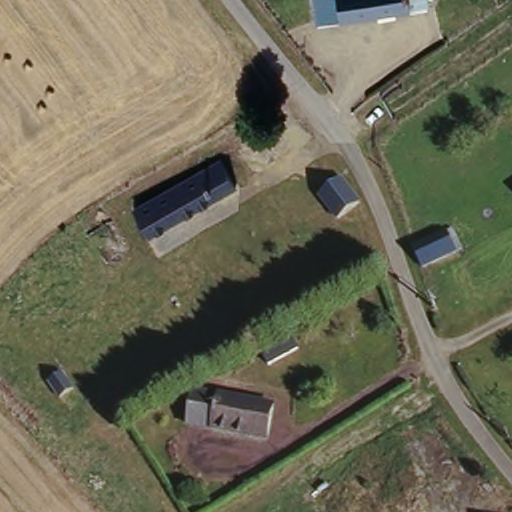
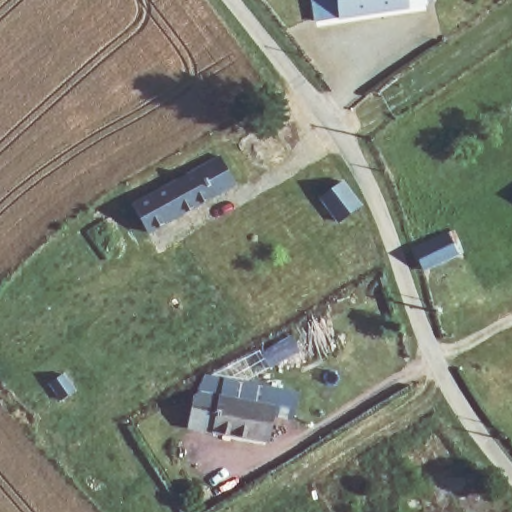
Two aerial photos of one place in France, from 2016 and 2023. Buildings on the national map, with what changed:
unchanged [(418,0),(419,7),(402,9),(309,16),(308,0),(418,0)]
unchanged [(223,163),(237,189),(151,238),(136,212),(223,163)]
unchanged [(331,224),(314,195),(336,183),(353,213),(348,215),(338,220),(331,224)]
unchanged [(412,245),(447,233),(455,257),(420,269),(412,245)]
unchanged [(48,358),(74,389),(54,406),(28,374),(48,358)]
unchanged [(191,395),(198,394),(272,409),(263,442),(183,424),(191,395)]

